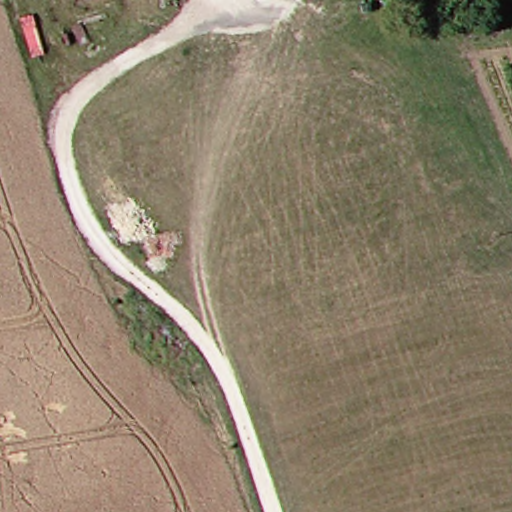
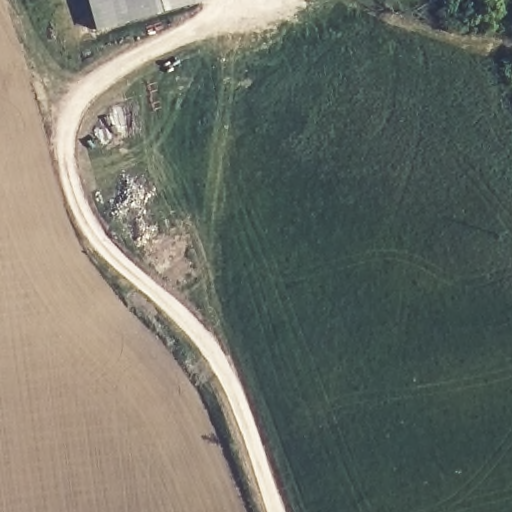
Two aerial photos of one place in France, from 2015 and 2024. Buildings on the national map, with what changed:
new [(91,0),(201,0),(202,3),(99,30),(91,0)]

